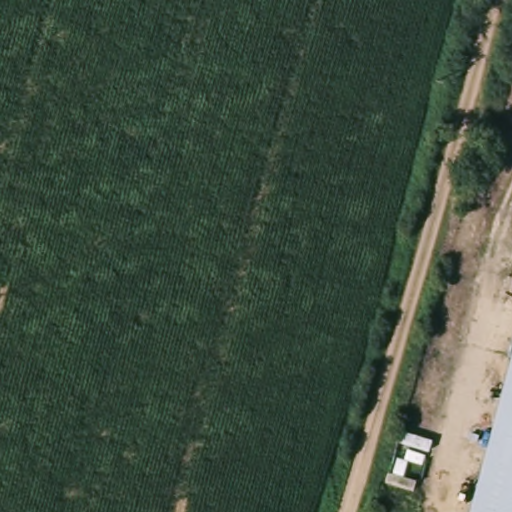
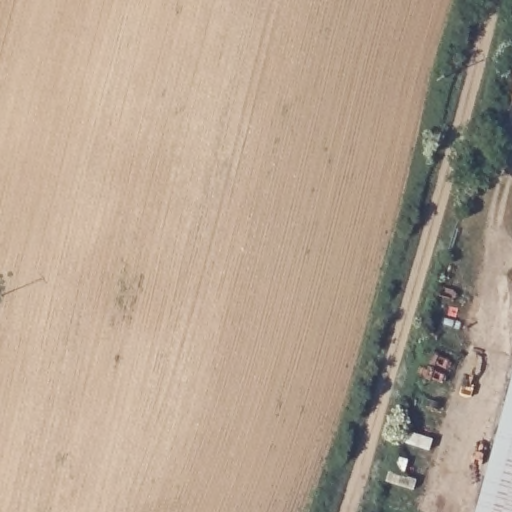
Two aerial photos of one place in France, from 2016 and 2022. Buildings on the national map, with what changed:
unchanged [(512,386),(512,512),(479,512),(512,386)]

